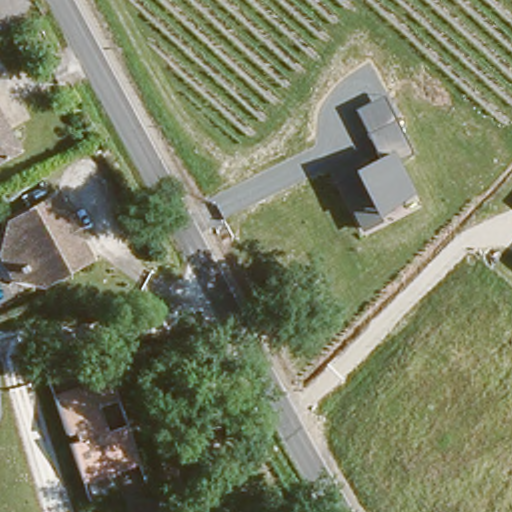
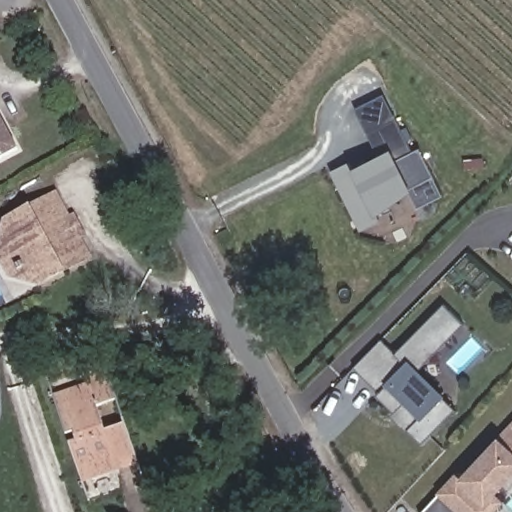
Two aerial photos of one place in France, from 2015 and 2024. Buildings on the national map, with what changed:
unchanged [(397,162),(412,194),(377,215),(381,221),(360,231),(332,175),(351,165),(352,169),(378,156),(356,109),(384,96),(412,154),(397,162)]
unchanged [(0,158),(0,120),(16,150),(0,158)]
unchanged [(0,220),(6,217),(54,191),(69,218),(74,215),(83,233),(77,235),(87,251),(33,281),(11,272),(0,252),(0,220)]
new [(381,342),(395,354),(442,304),(462,324),(417,372),(442,397),(452,409),(420,445),(407,432),(390,416),(392,413),(375,396),(380,392),(353,367),(381,342)]
unchanged [(92,403),(101,431),(121,424),(133,461),(81,478),(53,392),(87,381),(82,367),(100,361),(111,397),(92,403)]
new [(497,437),(500,440),(512,426),(512,471),(493,493),(502,503),(493,512),(423,512),(458,479),(497,437)]

